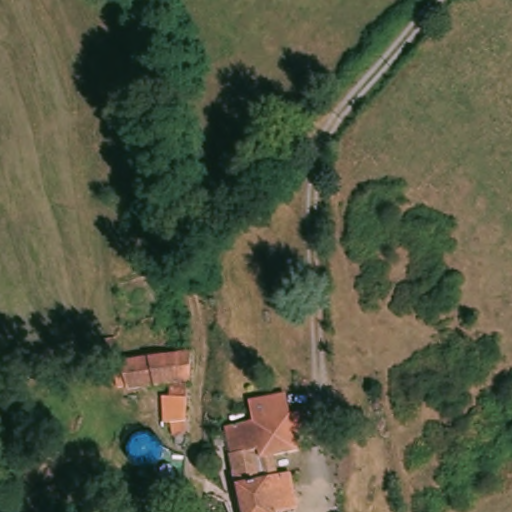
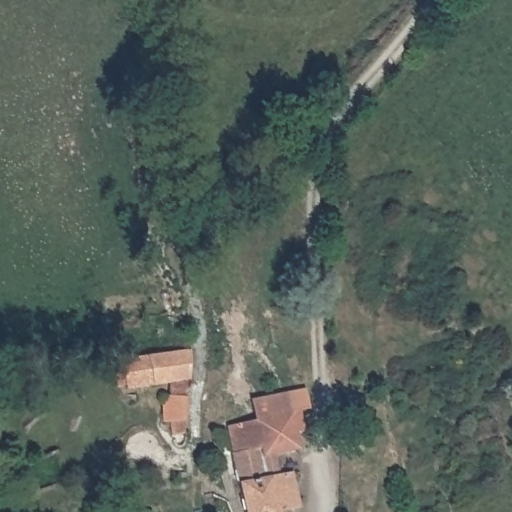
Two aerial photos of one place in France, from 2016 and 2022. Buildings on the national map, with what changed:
unchanged [(167,431),(165,417),(157,418),(157,391),(162,391),(162,379),(121,385),(120,381),(112,383),(110,371),(119,369),(116,358),(185,346),(185,351),(185,375),(181,376),(181,389),(181,393),(180,416),(180,429),(167,431)]
unchanged [(243,512),(230,456),(231,455),(225,428),(260,422),(255,402),(290,395),(294,415),(305,413),(308,433),(300,435),(303,452),(277,456),(281,476),(292,474),(298,510),(284,512),(243,512)]
unchanged [(71,483),(15,502),(5,475),(60,450),(65,461),(67,471),(71,483)]

